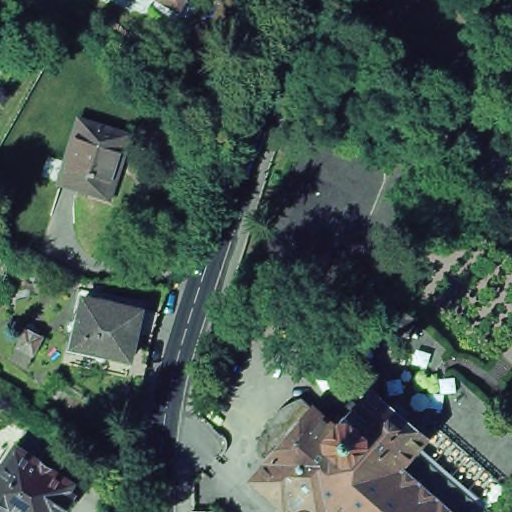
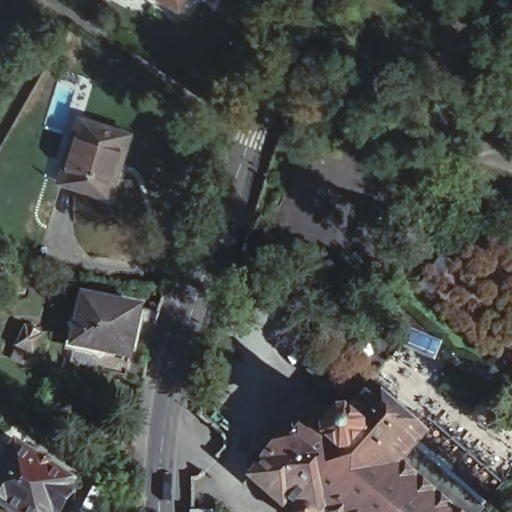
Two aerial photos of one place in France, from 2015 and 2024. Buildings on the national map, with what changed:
unchanged [(183,7),(171,0),(187,0),(183,7)]
unchanged [(86,117),(135,133),(126,161),(123,170),(114,197),(71,184),(66,182),(72,164),(86,117)]
unchanged [(7,269),(4,277),(0,278),(0,260),(4,261),(7,269)]
unchanged [(360,287),(360,295),(351,295),(351,287),(360,287)]
unchanged [(142,303),(160,308),(160,311),(155,327),(138,322),(131,352),(74,340),(85,291),(142,303)]
unchanged [(278,310),(285,313),(280,325),(272,321),(278,310)]
unchanged [(26,331),(27,328),(42,336),(40,340),(32,357),(28,365),(12,357),(16,350),(26,331)]
unchanged [(131,352),(127,371),(70,358),(74,340),(131,352)]
unchanged [(260,449),(263,440),(266,432),(270,424),(276,417),(282,410),(290,405),(297,401),(306,397),(314,404),(318,404),(318,407),(338,425),(344,418),(348,413),(353,417),(377,390),(427,434),(416,447),(472,496),(473,495),(488,508),(485,512),(331,512),(300,512),(301,510),(291,501),(288,504),(258,477),(273,460),(260,449)]
unchanged [(78,477),(73,483),(79,487),(65,508),(60,505),(55,512),(28,512),(10,500),(5,501),(0,497),(0,474),(22,440),(59,464),(78,477)]

